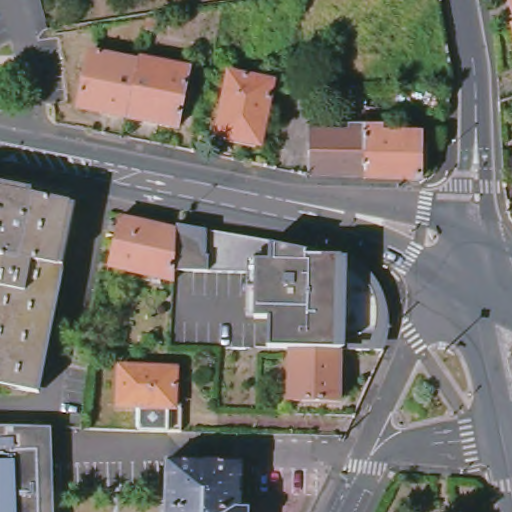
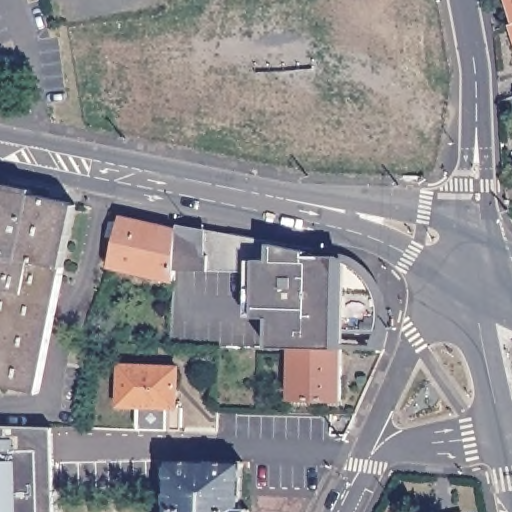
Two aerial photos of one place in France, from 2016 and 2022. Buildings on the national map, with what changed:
unchanged [(512,0),(512,9),(509,0),(512,0)]
unchanged [(154,31),(145,30),(148,19),(153,18),(156,18),(157,18),(154,31)]
demolished [(128,118),(109,114),(108,114),(108,113),(109,105),(81,99),(80,99),(90,51),(139,60),(128,118)]
demolished [(189,68),(177,128),(128,118),(139,60),(140,58),(189,68)]
demolished [(261,145),(216,136),(228,72),(273,81),(261,145)]
demolished [(366,107),(334,106),(334,86),(366,84),(366,107)]
demolished [(421,179),(311,174),(310,131),(349,133),(349,125),(381,126),(381,133),(421,134),(421,179)]
unchanged [(66,198),(54,262),(50,260),(25,387),(0,381),(0,184),(66,198)]
unchanged [(119,208),(176,220),(176,232),(174,270),(108,255),(119,208)]
unchanged [(271,308),(256,308),(256,263),(193,261),(194,233),(228,234),(229,225),(280,235),(286,237),(286,245),(330,245),(338,248),(338,249),(343,250),(345,252),(347,253),(351,255),(355,258),(359,261),(363,264),(366,268),(369,273),(371,277),(374,281),(374,284),(376,285),(377,290),(378,295),(378,298),(378,300),(378,306),(378,310),(377,315),(376,322),(336,320),(336,339),(291,338),(270,338),(271,308)]
unchanged [(341,389),(289,389),(291,338),(336,339),(341,339),(341,389)]
unchanged [(138,402),(118,400),(120,360),(177,362),(175,403),(181,403),(181,426),(138,424),(138,402)]
unchanged [(47,423),(50,512),(0,512),(0,421),(47,423)]
unchanged [(166,459),(243,462),(241,509),(249,509),(249,512),(165,512),(166,459)]

